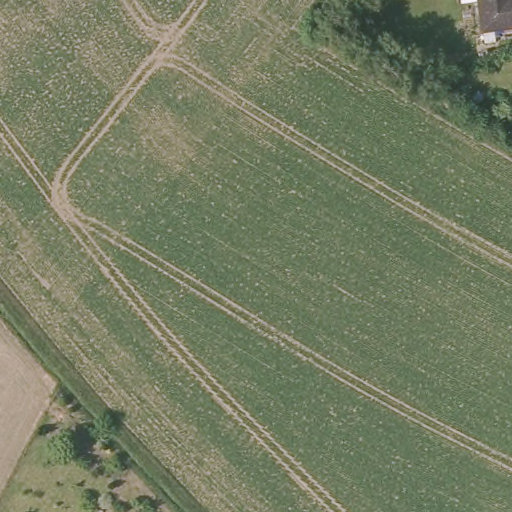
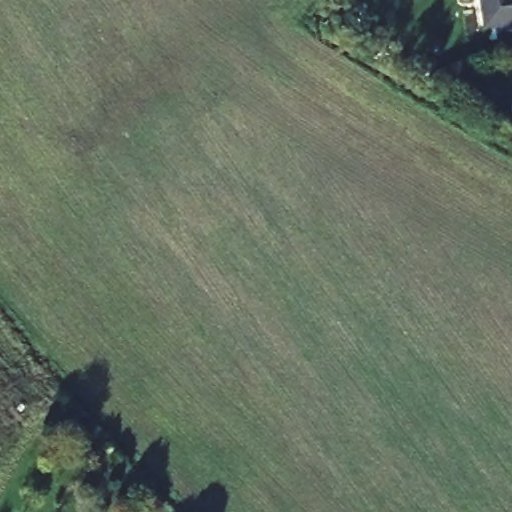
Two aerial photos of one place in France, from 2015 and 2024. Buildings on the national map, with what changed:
unchanged [(481,34),(477,0),(512,0),(512,29),(481,34)]

